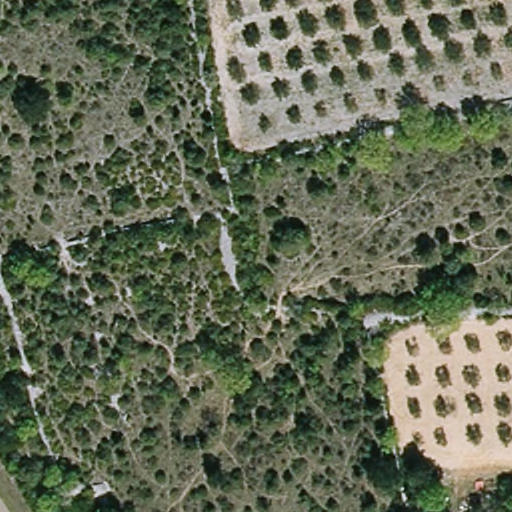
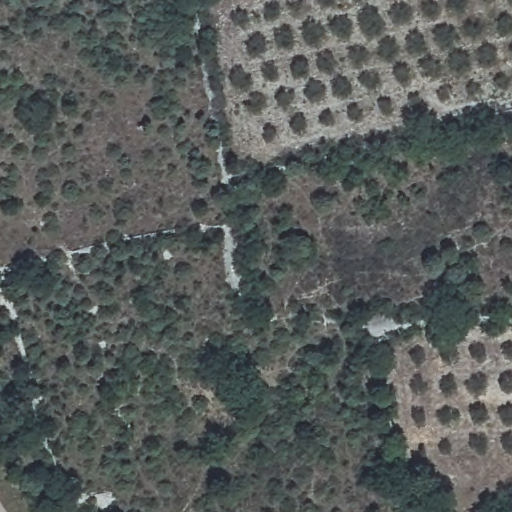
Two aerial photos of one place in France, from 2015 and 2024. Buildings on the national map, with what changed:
[]

